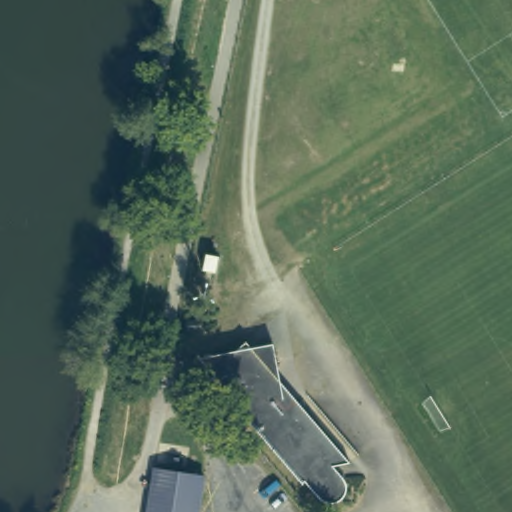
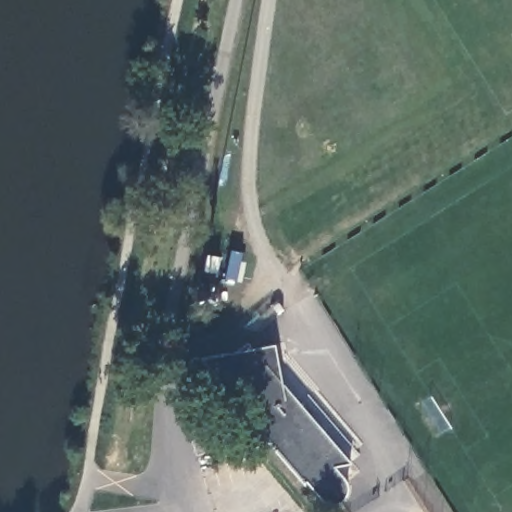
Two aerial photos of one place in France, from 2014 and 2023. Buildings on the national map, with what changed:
unchanged [(285,396),(292,405),(300,400),(351,461),(335,465),(344,476),(348,482),(348,487),(347,492),(345,496),(341,498),(336,501),(330,501),(325,499),(321,496),(307,479),(303,482),(215,377),(217,375),(201,356),(229,350),(231,353),(249,340),(254,346),(274,342),(281,378),(282,380),(285,396)]
demolished [(201,477),(196,512),(144,512),(144,507),(150,508),(157,469),(201,477)]

